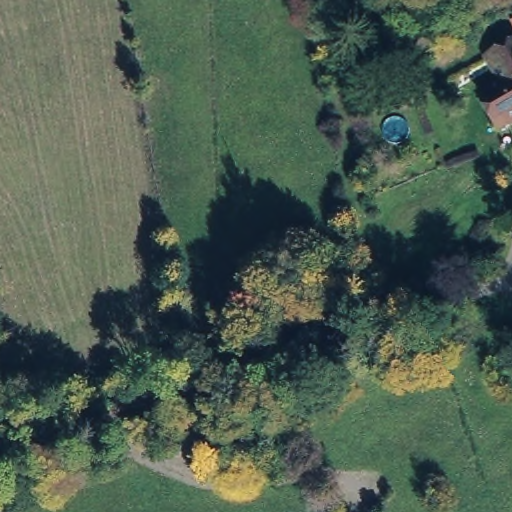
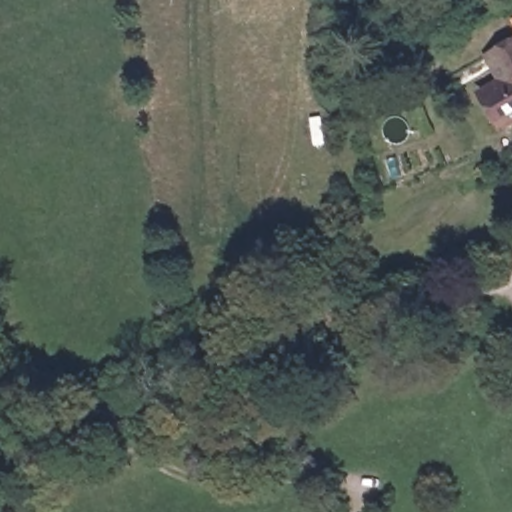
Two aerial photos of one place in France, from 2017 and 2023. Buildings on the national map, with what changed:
unchanged [(509,19),(512,17),(512,26),(509,19)]
unchanged [(472,92),(493,82),(479,52),(512,33),(512,131),(499,139),(472,92)]

